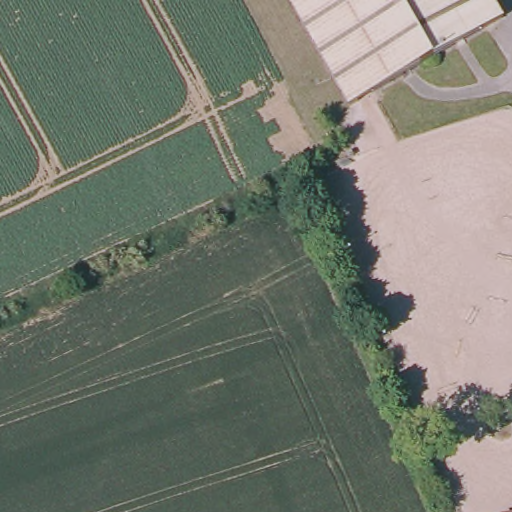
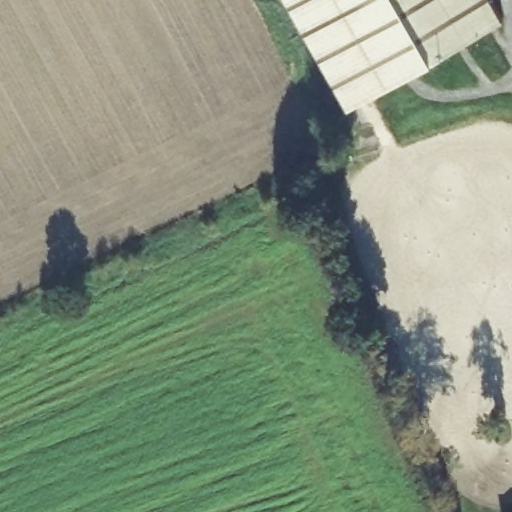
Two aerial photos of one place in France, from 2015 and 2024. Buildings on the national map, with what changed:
unchanged [(281,0),(487,0),(499,21),(338,107),(281,0)]

